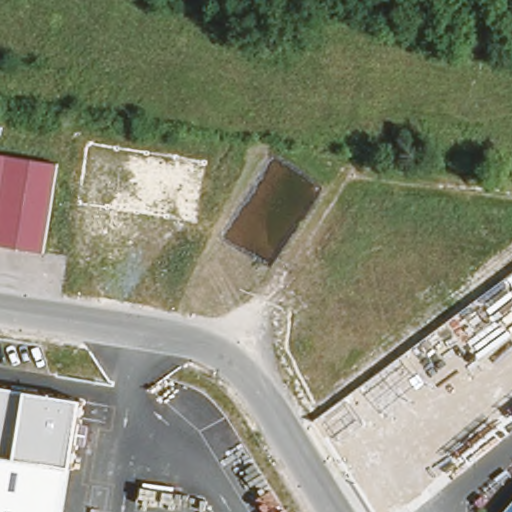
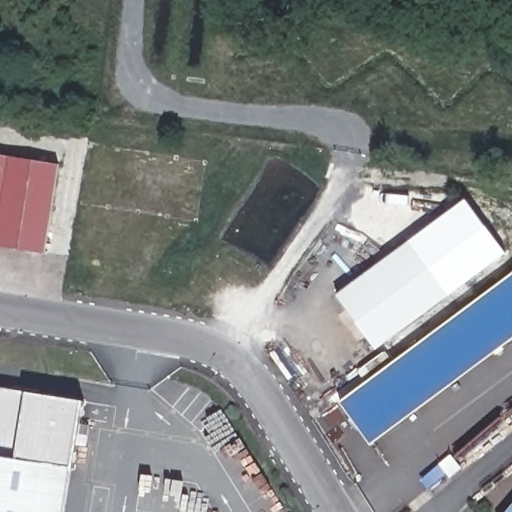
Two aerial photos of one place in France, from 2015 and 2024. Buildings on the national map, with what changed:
unchanged [(44,252),(0,246),(0,154),(59,163),(44,252)]
new [(450,295),(409,242),(465,198),(506,253),(450,295)]
new [(375,349),(337,295),(409,242),(450,295),(375,349)]
new [(384,350),(392,360),(512,271),(512,339),(370,445),(337,401),(364,381),(356,371),(384,350)]
unchanged [(26,391),(83,400),(72,468),(65,512),(0,512),(0,387),(26,391)]
unchanged [(512,512),(510,512),(508,510),(512,506),(512,512)]

